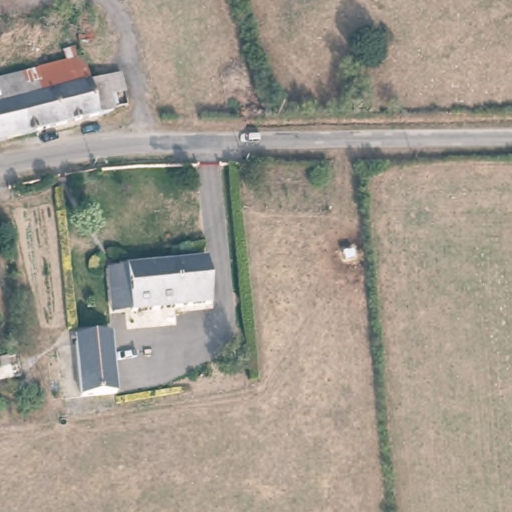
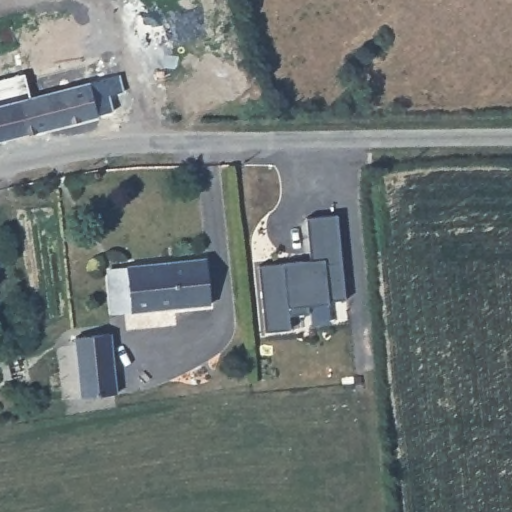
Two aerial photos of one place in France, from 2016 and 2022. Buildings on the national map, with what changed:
unchanged [(92,80),(116,73),(122,73),(126,89),(111,94),(114,108),(0,138),(0,76),(64,58),(63,49),(77,45),(76,8),(93,6),(93,40),(81,41),(82,53),(87,74),(92,80)]
new [(310,258),(306,215),(337,212),(346,298),(328,300),(329,302),(307,304),(308,312),(288,314),(290,328),(264,331),(257,263),(302,259),(310,258)]
unchanged [(195,257),(199,303),(123,310),(119,264),(195,257)]
unchanged [(77,336),(109,333),(112,340),(115,389),(82,392),(76,345),(77,336)]

